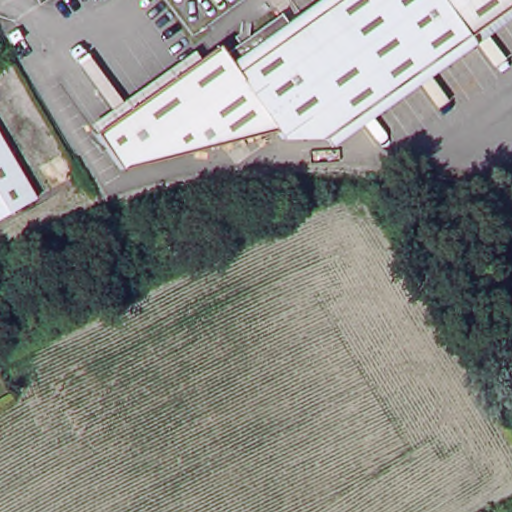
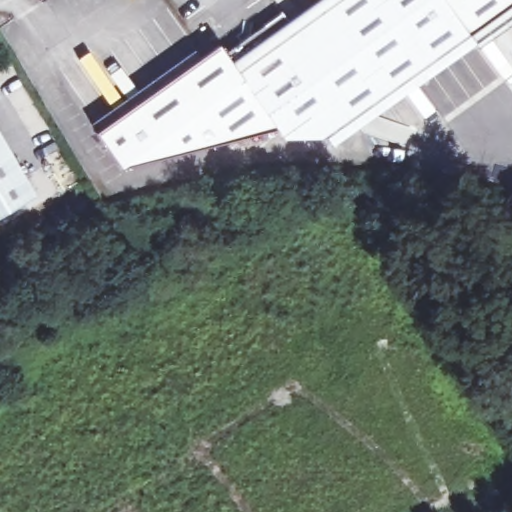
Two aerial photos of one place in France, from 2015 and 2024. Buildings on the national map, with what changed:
unchanged [(512,0),(327,131),(285,131),(279,124),(271,111),(225,47),(282,8),(292,23),(307,13),(325,0),(512,0)]
unchanged [(279,124),(123,164),(97,128),(220,40),(225,47),(271,111),(279,124)]
unchanged [(0,218),(0,132),(37,196),(0,218)]

